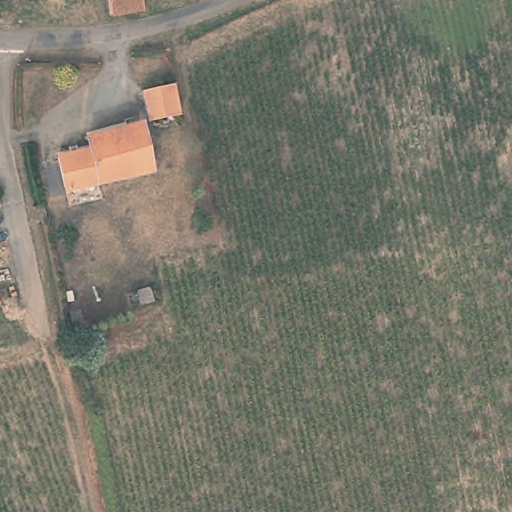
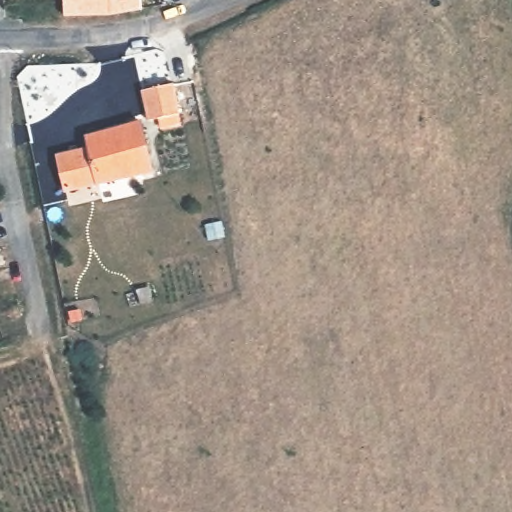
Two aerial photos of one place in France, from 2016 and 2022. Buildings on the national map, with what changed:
new [(64,15),(63,0),(111,0),(113,12),(64,15)]
unchanged [(113,12),(111,0),(146,0),(147,7),(113,12)]
unchanged [(145,90),(177,84),(182,112),(151,119),(145,90)]
unchanged [(141,172),(107,180),(71,191),(61,159),(92,147),(88,131),(144,120),(155,170),(141,172)]
unchanged [(137,300),(135,289),(141,286),(139,280),(145,278),(151,295),(137,300)]

